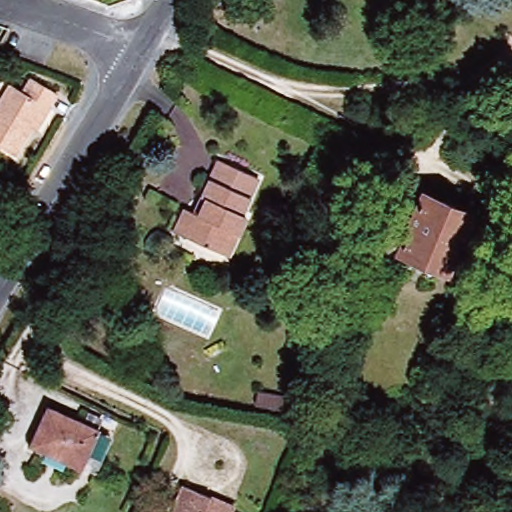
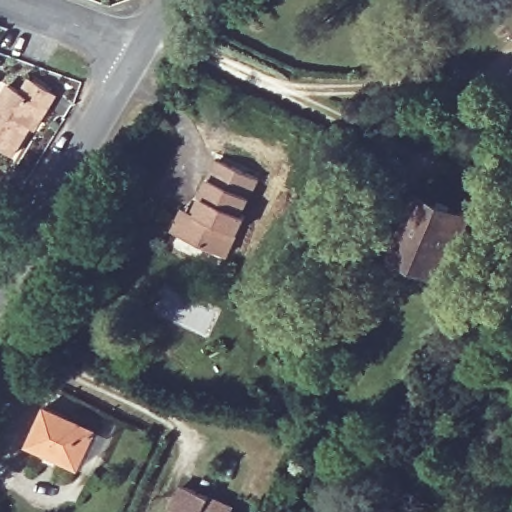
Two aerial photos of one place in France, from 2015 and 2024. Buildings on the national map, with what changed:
unchanged [(44,111),(40,109),(11,155),(0,148),(0,101),(8,87),(19,94),(28,81),(52,96),(44,111)]
unchanged [(178,216),(186,221),(213,168),(252,188),(235,218),(240,221),(221,260),(177,238),(170,234),(178,216)]
unchanged [(445,270),(397,249),(419,197),(467,218),(445,270)]
unchanged [(84,473),(33,448),(51,409),(103,434),(84,473)]
unchanged [(170,505),(178,487),(221,504),(218,511),(221,512),(167,512),(170,505)]

